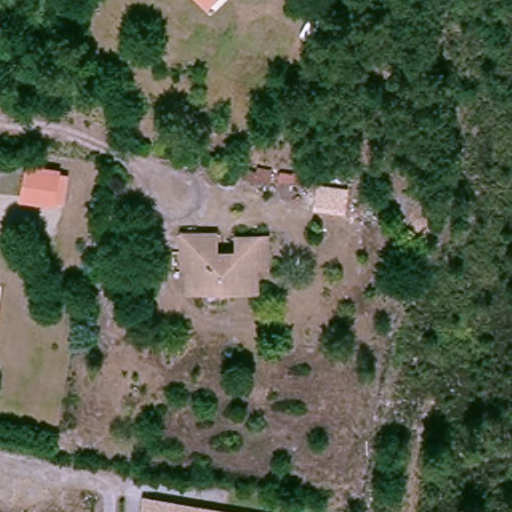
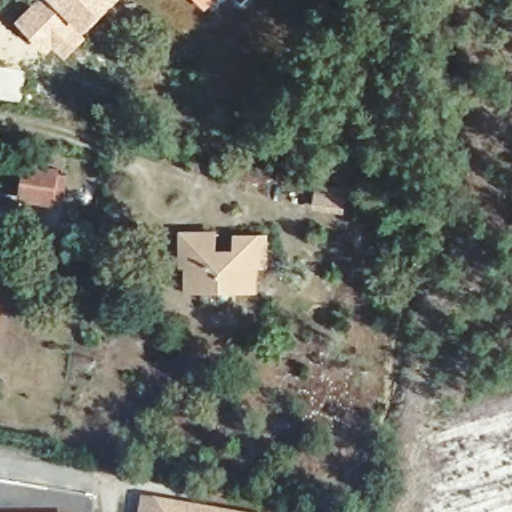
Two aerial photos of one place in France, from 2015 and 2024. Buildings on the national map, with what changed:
new [(37,0),(118,0),(85,35),(87,37),(65,60),(53,49),(48,55),(15,21),(37,0)]
unchanged [(211,6),(205,0),(217,0),(211,6)]
new [(20,103),(0,100),(0,67),(26,71),(20,103)]
unchanged [(68,171),(62,200),(22,192),(28,163),(68,171)]
unchanged [(323,189),(371,198),(368,215),(320,206),(323,189)]
unchanged [(259,278),(254,299),(190,288),(193,270),(181,267),(187,231),(222,236),(220,255),(219,258),(243,262),(246,246),(276,250),(270,278),(259,278)]
unchanged [(161,498),(177,501),(192,504),(233,512),(145,512),(148,496),(161,498)]

